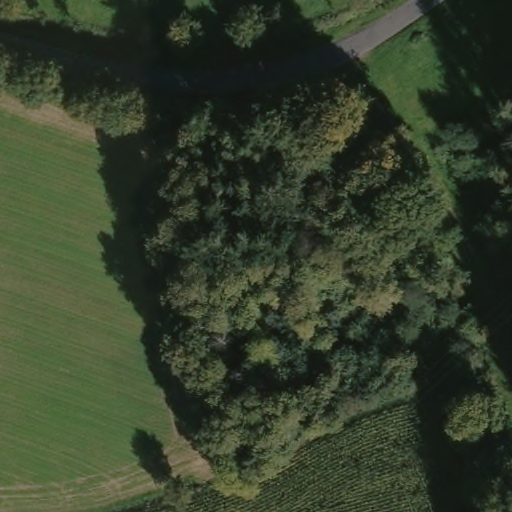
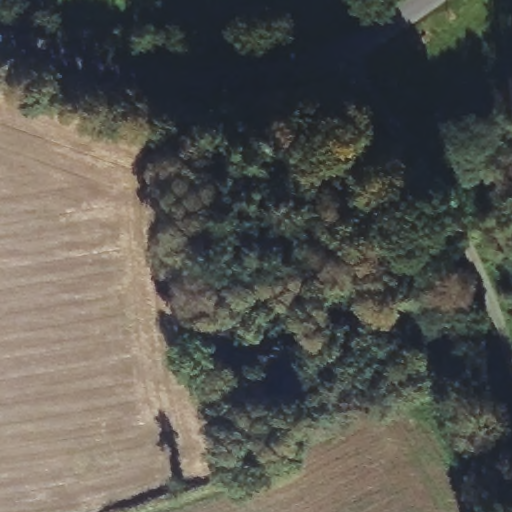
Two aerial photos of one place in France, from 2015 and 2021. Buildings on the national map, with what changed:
[]

